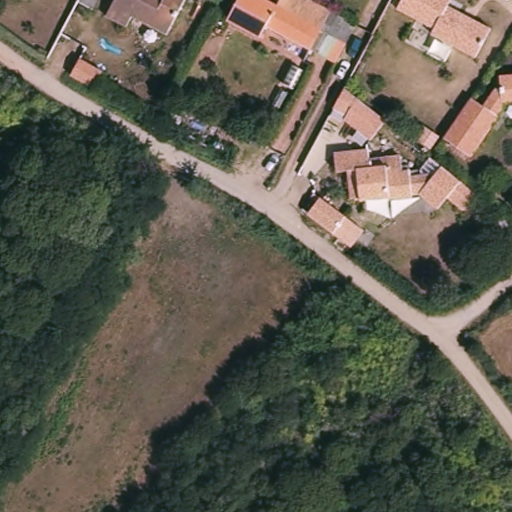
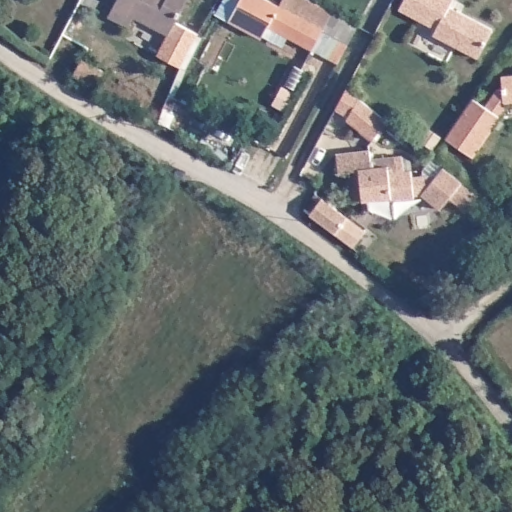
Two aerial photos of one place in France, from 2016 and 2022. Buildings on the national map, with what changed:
unchanged [(128,26),(108,15),(116,0),(186,0),(168,34),(134,16),(128,26)]
unchanged [(267,24),(261,37),(228,19),(239,0),(271,0),(279,4),(323,27),(312,48),(267,24)]
unchanged [(281,0),(315,0),(332,9),(323,27),(279,4),(281,0)]
unchanged [(432,34),(435,27),(398,7),(402,0),(453,0),(450,4),(493,26),(478,57),(432,34)]
unchanged [(336,63),(312,48),(323,27),(332,9),(356,26),(336,63)]
new [(203,36),(185,70),(157,55),(168,34),(175,21),(203,36)]
unchanged [(94,86),(72,74),(80,57),(103,70),(94,86)]
unchanged [(502,106),(500,78),(512,77),(512,105),(502,106)]
unchanged [(502,106),(473,156),(444,137),(471,95),(484,103),(494,86),(500,85),(502,106)]
unchanged [(364,146),(353,137),(358,130),(331,108),(346,88),(385,120),(364,146)]
unchanged [(411,178),(437,174),(443,166),(478,194),(465,210),(449,197),(439,208),(420,195),(413,196),(413,199),(390,201),(389,198),(361,200),(360,198),(351,199),(350,182),(349,170),(337,171),(336,153),(369,150),(370,159),(400,156),(402,172),(410,172),(411,178)]
unchanged [(323,202),(317,197),(321,193),(351,218),(338,234),(313,214),(323,202)]

